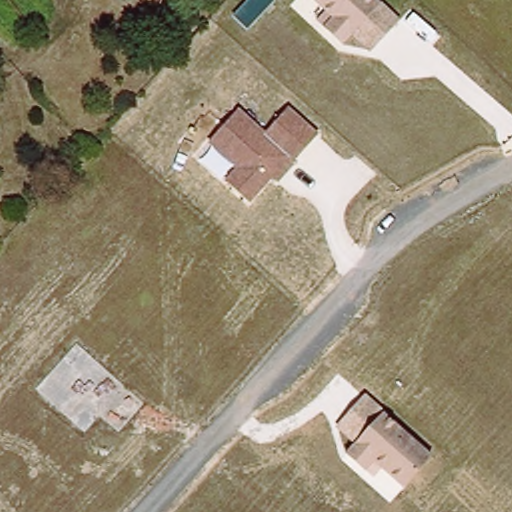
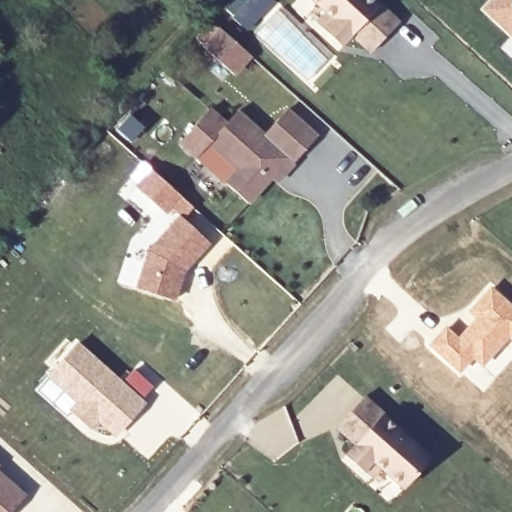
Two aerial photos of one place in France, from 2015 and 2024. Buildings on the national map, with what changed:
new [(272,0),(275,3),(261,17),(248,31),(233,18),(247,3),(249,0),(272,0)]
unchanged [(340,45),(316,22),(325,11),(312,0),(373,0),(380,6),(397,21),(371,51),(350,33),(340,45)]
new [(484,8),(492,0),(512,0),(512,36),(510,35),(484,8)]
new [(252,58),(235,76),(197,41),(212,22),(252,58)]
new [(211,106),(228,121),(207,144),(196,159),(178,143),(211,106)]
unchanged [(320,136),(277,185),(272,181),(250,206),(225,182),(235,171),(207,144),(228,121),(238,111),(265,134),(288,109),(320,136)]
new [(172,299),(136,287),(148,249),(180,216),(208,242),(196,254),(182,270),(172,299)]
new [(457,335),(474,317),(468,312),(492,286),(512,304),(512,341),(510,339),(482,366),(474,358),(459,374),(428,344),(447,325),(457,335)]
new [(77,350),(145,411),(117,442),(87,414),(77,424),(60,409),(72,396),(51,379),(77,350)]
unchanged [(386,415),(432,456),(405,491),(373,464),(364,474),(343,456),(352,443),(335,427),(363,393),(386,415)]
new [(25,499),(13,512),(0,512),(0,476),(25,499)]

